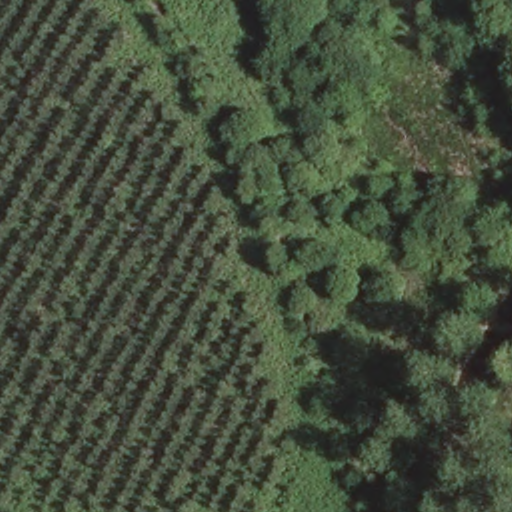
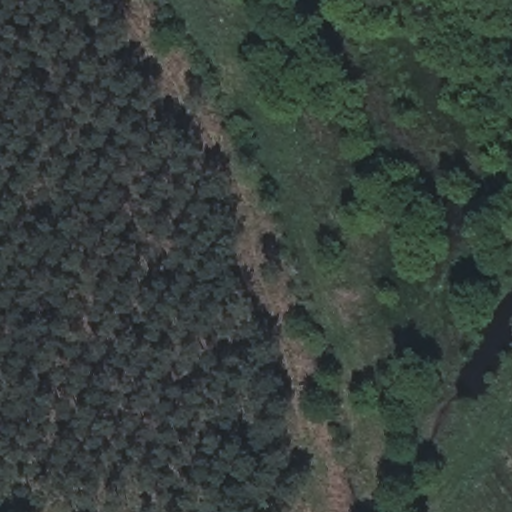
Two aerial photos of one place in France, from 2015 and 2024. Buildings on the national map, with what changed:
[]

